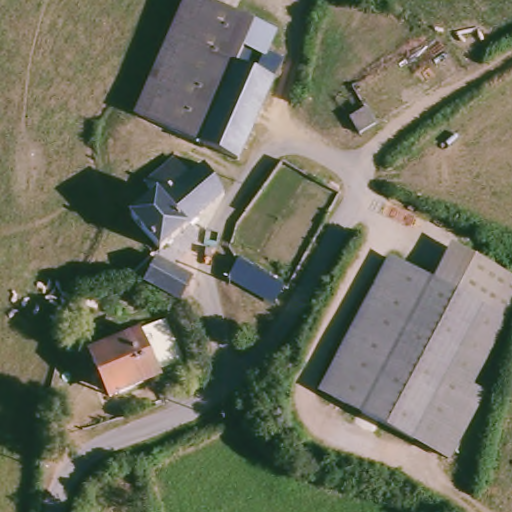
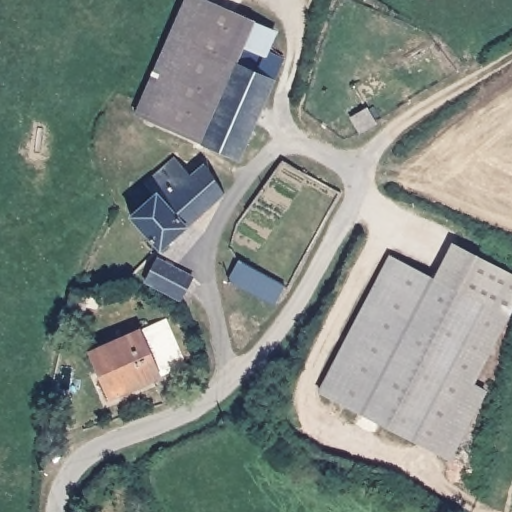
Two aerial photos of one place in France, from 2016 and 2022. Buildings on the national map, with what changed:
unchanged [(191,0),(195,0),(259,26),(250,54),(270,63),(260,81),(222,61),(193,121),(220,133),(214,146),(141,114),(191,0)]
unchanged [(291,66),(247,160),(244,169),(210,154),(214,146),(220,133),(193,121),(222,61),(260,81),(270,63),(272,60),(289,66),(291,66)]
unchanged [(364,126),(355,109),(370,101),(380,113),(364,126)]
unchanged [(165,248),(136,211),(160,192),(152,179),(183,154),(196,170),(207,161),(231,193),(165,248)]
unchanged [(474,251),(512,268),(512,299),(507,310),(457,287),(474,251)]
unchanged [(474,378),(487,384),(454,453),(322,390),(385,254),(457,287),(507,310),(474,378)]
unchanged [(152,282),(166,257),(200,275),(188,300),(152,282)]
unchanged [(290,293),(277,307),(239,275),(251,259),(290,293)]
unchanged [(77,302),(90,307),(82,327),(69,323),(77,302)]
unchanged [(184,369),(117,401),(104,375),(97,377),(90,361),(163,326),(184,369)]

